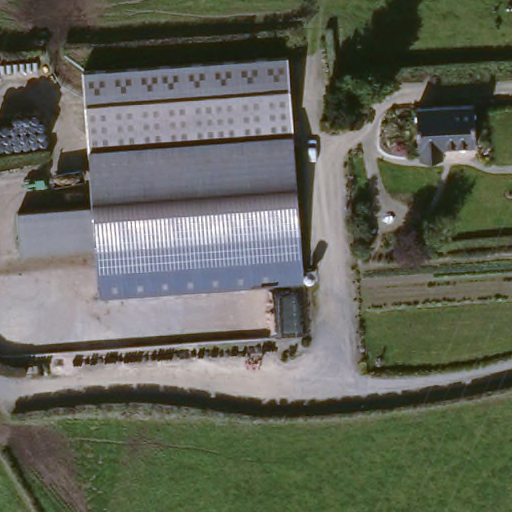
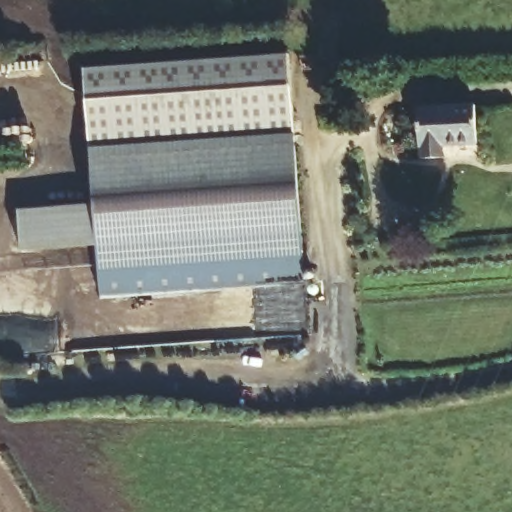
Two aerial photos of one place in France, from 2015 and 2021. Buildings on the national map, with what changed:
unchanged [(86,78),(232,71),(250,70),(290,68),(294,150),(88,156),(86,78)]
unchanged [(440,145),(441,165),(416,166),(412,106),(467,104),(468,144),(440,145)]
unchanged [(302,292),(96,297),(93,250),(19,252),(17,213),(91,211),(88,156),(294,150),(302,292)]

